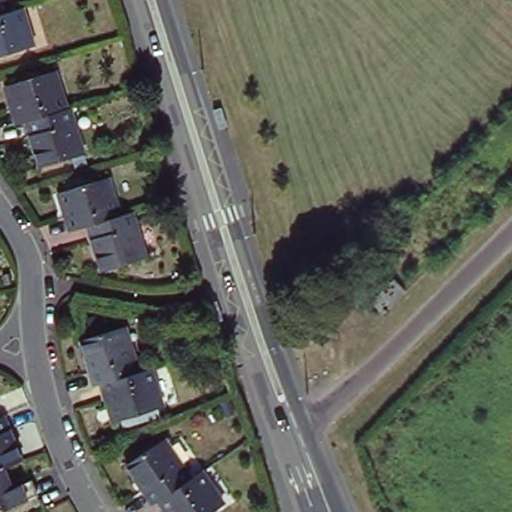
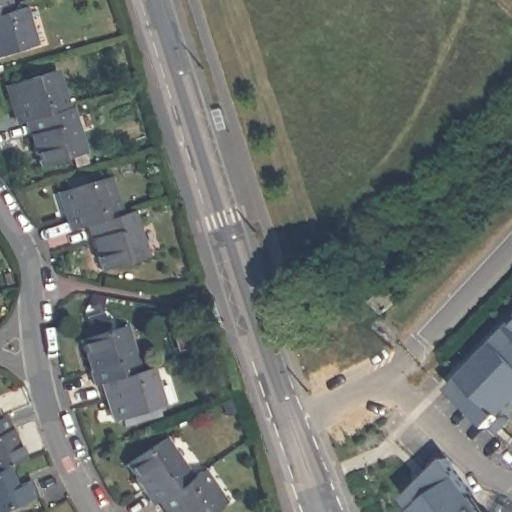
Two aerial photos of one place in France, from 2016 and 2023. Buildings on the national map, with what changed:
unchanged [(0,13),(0,0),(8,0),(11,10),(0,13)]
unchanged [(0,57),(0,13),(11,10),(21,7),(34,46),(0,57)]
unchanged [(0,86),(48,71),(59,109),(20,121),(11,124),(0,86)]
unchanged [(79,152),(35,166),(20,121),(59,109),(65,107),(79,152)]
unchanged [(54,191),(103,176),(115,214),(84,225),(66,230),(54,191)]
unchanged [(142,256),(98,270),(84,225),(115,214),(127,210),(142,256)]
unchanged [(358,287),(383,263),(401,280),(399,283),(410,295),(387,318),(358,287)]
new [(498,410),(509,420),(497,430),(454,390),(505,336),(495,326),(512,308),(512,396),(498,410)]
unchanged [(180,350),(174,331),(190,326),(196,345),(180,350)]
unchanged [(76,339),(119,327),(133,371),(96,382),(89,385),(76,339)]
unchanged [(158,407),(108,420),(96,382),(133,371),(146,367),(158,407)]
unchanged [(19,459),(1,467),(0,468),(0,418),(1,417),(19,459)]
unchanged [(126,462),(164,437),(190,477),(159,498),(153,503),(126,462)]
new [(469,508),(473,512),(417,512),(407,499),(446,458),(477,502),(469,508)]
unchanged [(30,479),(38,495),(0,511),(0,468),(1,467),(9,487),(30,479)]
unchanged [(213,512),(168,512),(159,498),(190,477),(202,470),(224,505),(213,512)]

